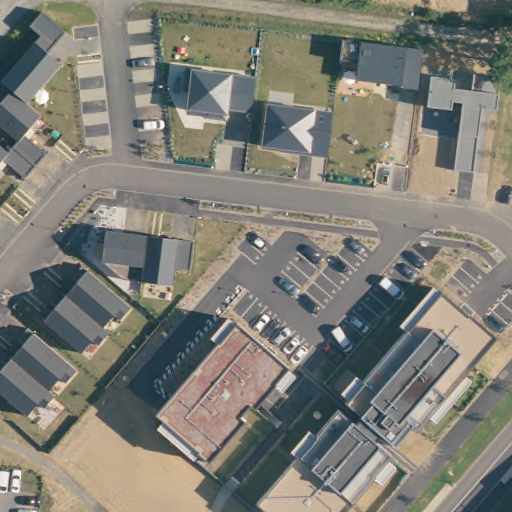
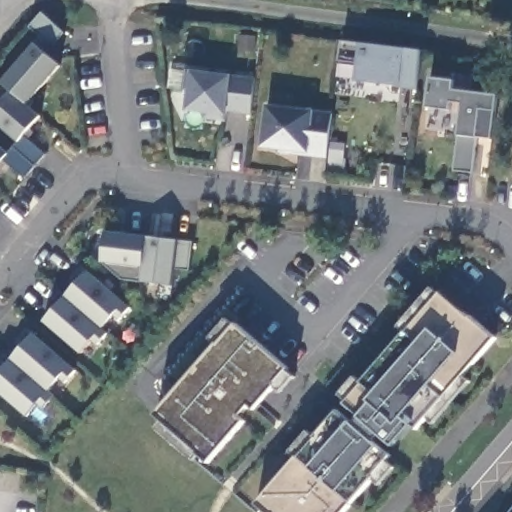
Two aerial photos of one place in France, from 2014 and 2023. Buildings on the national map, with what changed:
unchanged [(16,142),(0,127),(0,85),(1,83),(35,44),(41,37),(30,26),(44,12),(65,33),(48,53),(62,66),(28,105),(41,116),(26,134),(46,154),(25,178),(5,160),(0,166),(0,146),(7,151),(16,142)]
unchanged [(362,43),(421,50),(417,89),(355,82),(357,63),(340,61),(343,41),(362,43)]
unchanged [(231,75),(255,77),(251,113),(227,111),(226,117),(187,112),(190,71),(231,75)]
unchanged [(454,81),(453,89),(470,91),(473,73),(500,77),(498,94),(495,110),(481,109),(477,138),(473,173),(454,171),(458,136),(462,104),(451,102),(450,110),(427,108),(429,78),(454,81)]
unchanged [(315,110),(333,112),(327,156),(310,153),(263,147),(267,106),(315,110)]
unchanged [(150,235),(178,238),(194,240),(190,271),(175,271),(174,285),(142,282),(123,281),(103,262),(107,231),(150,235)]
unchanged [(89,271),(131,309),(121,321),(115,316),(104,328),(109,333),(97,346),(92,342),(81,354),(44,322),(89,271)]
unchanged [(290,450),(309,430),(317,437),(338,411),(350,422),(353,425),(360,417),(346,404),(407,332),(398,326),(432,286),(441,293),(495,338),(464,374),(471,380),(435,424),(428,418),(417,431),(413,426),(395,446),(390,443),(381,435),(374,441),(378,446),(391,456),(343,512),(265,512),(257,505),(298,458),(290,450)]
unchanged [(236,324),(288,369),(295,376),(282,393),(273,387),(254,409),(249,406),(240,417),(244,421),(208,462),(199,453),(193,460),(157,427),(163,421),(156,415),(217,344),(209,337),(227,317),(236,324)]
unchanged [(77,371),(66,384),(59,379),(49,391),(56,397),(45,409),(38,404),(28,415),(0,392),(0,373),(32,333),(77,371)]
unchanged [(511,512),(512,511),(512,512),(511,512)]

